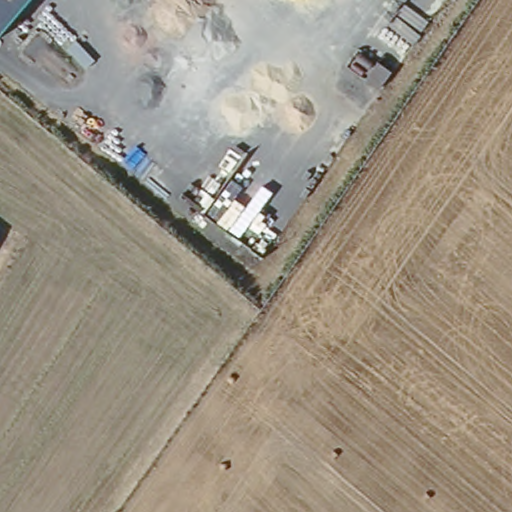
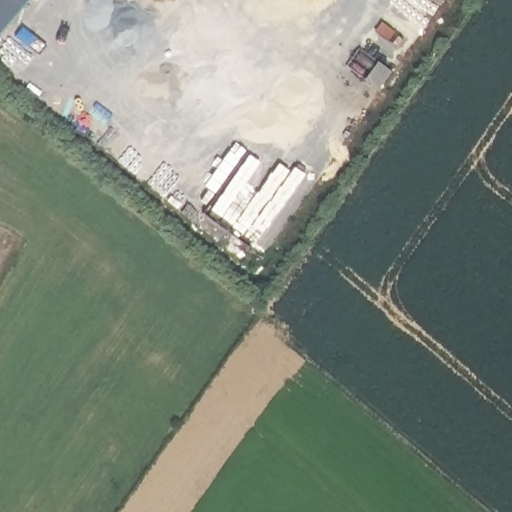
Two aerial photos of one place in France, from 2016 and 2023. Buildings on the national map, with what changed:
unchanged [(33,0),(0,37),(0,0),(33,0)]

